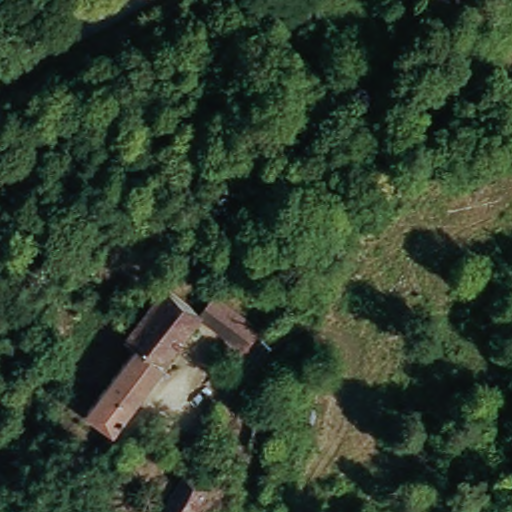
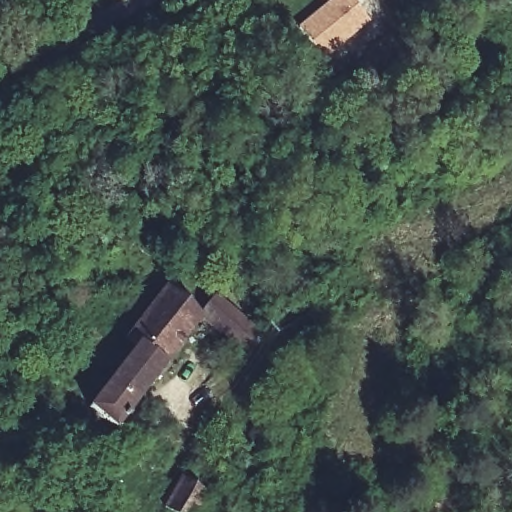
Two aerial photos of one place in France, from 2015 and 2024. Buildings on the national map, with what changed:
new [(331,0),(355,0),(371,19),(325,57),(299,26),(331,0)]
demolished [(458,42),(451,46),(422,5),(429,0),(447,0),(461,21),(458,42)]
unchanged [(117,429),(90,409),(137,347),(125,338),(162,289),(200,317),(117,429)]
unchanged [(245,351),(200,317),(215,297),(260,331),(245,351)]
unchanged [(250,413),(271,414),(267,449),(246,446),(250,413)]
unchanged [(200,487),(184,512),(173,512),(160,503),(180,473),(200,487)]

